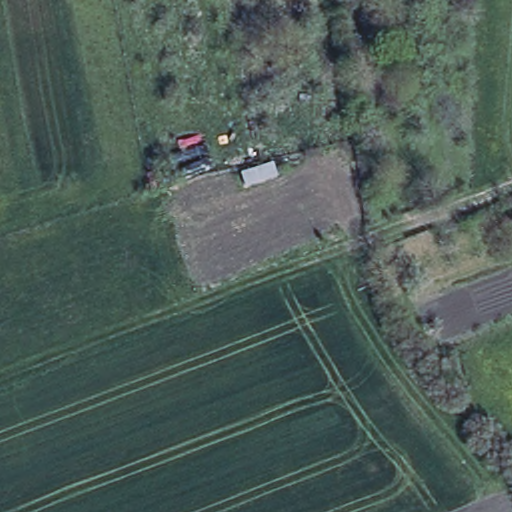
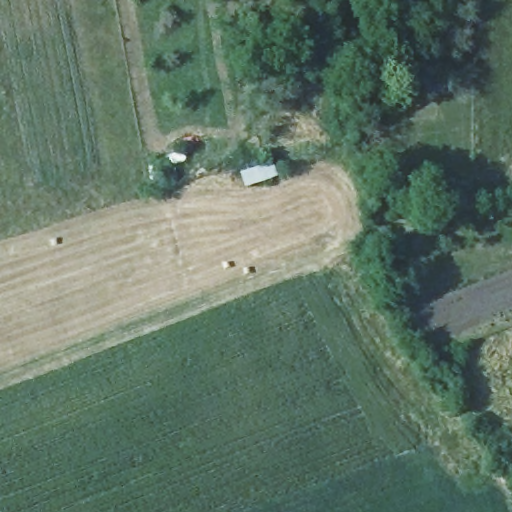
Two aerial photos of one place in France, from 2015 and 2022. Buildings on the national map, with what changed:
[]

